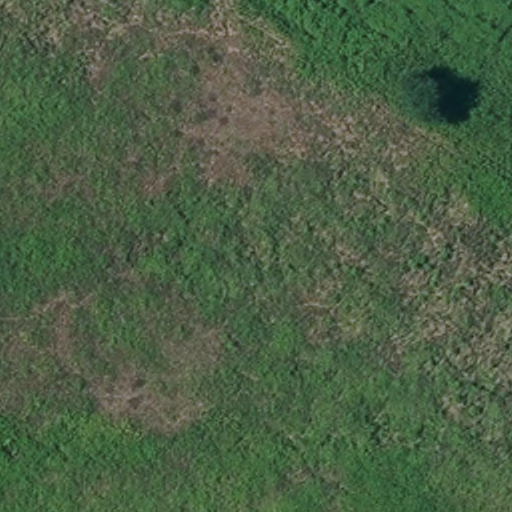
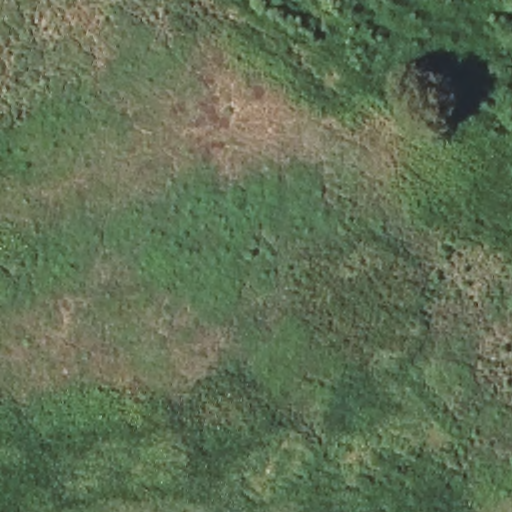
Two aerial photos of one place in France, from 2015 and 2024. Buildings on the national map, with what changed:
[]

